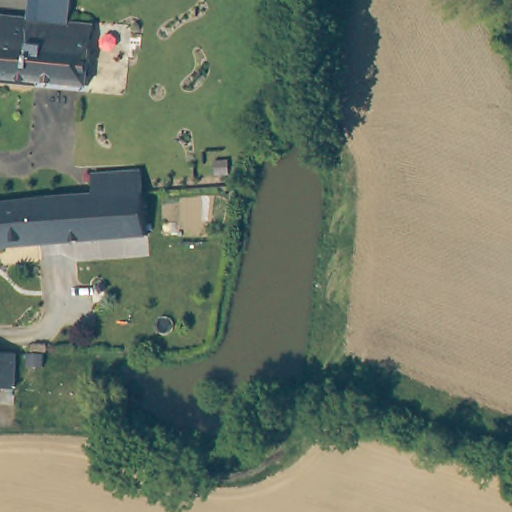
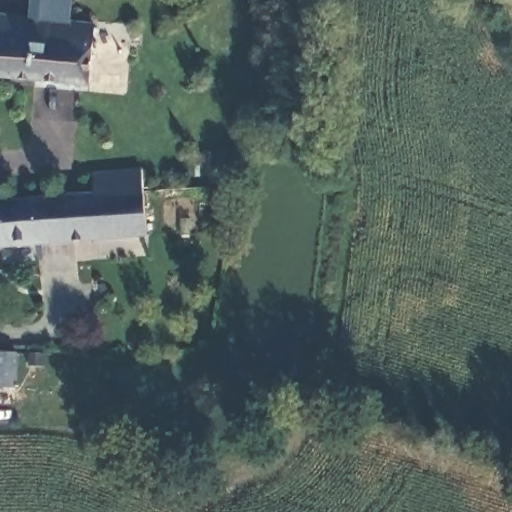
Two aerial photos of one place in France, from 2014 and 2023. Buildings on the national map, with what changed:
unchanged [(32,0),(72,0),(72,19),(30,15),(32,0)]
unchanged [(9,13),(91,21),(86,81),(0,73),(0,12),(9,13)]
unchanged [(135,197),(98,201),(94,201),(91,174),(90,174),(145,170),(149,196),(135,197)]
unchanged [(41,204),(45,204),(98,201),(135,197),(149,196),(150,239),(135,240),(0,245),(0,207),(41,204)]
unchanged [(7,350),(18,350),(17,386),(6,385),(6,387),(0,386),(0,349),(7,350)]

